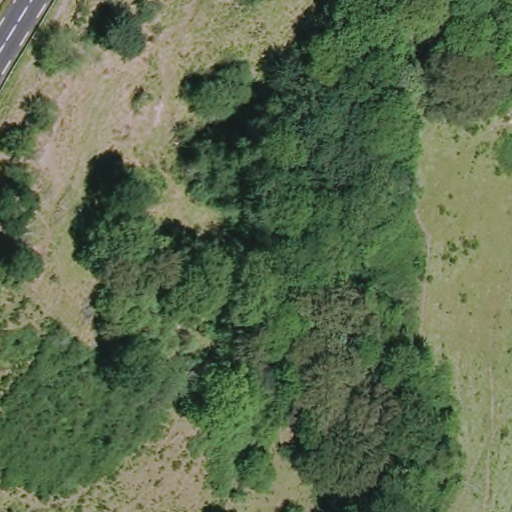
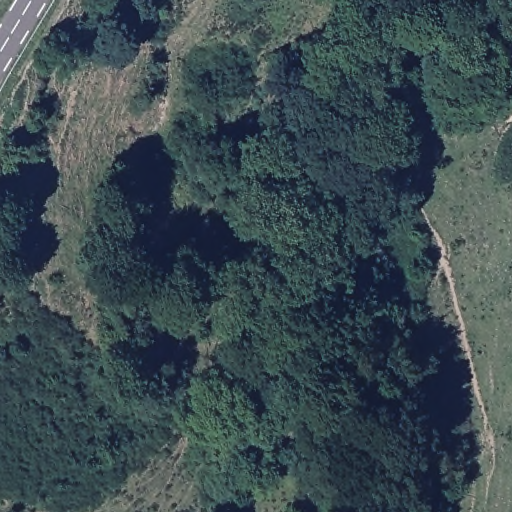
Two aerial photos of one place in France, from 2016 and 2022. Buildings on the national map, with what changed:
[]

